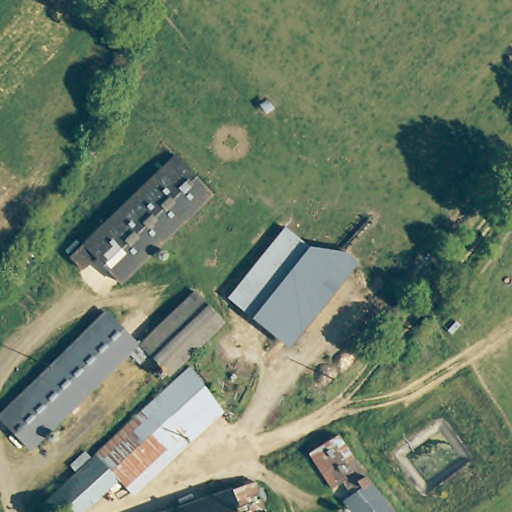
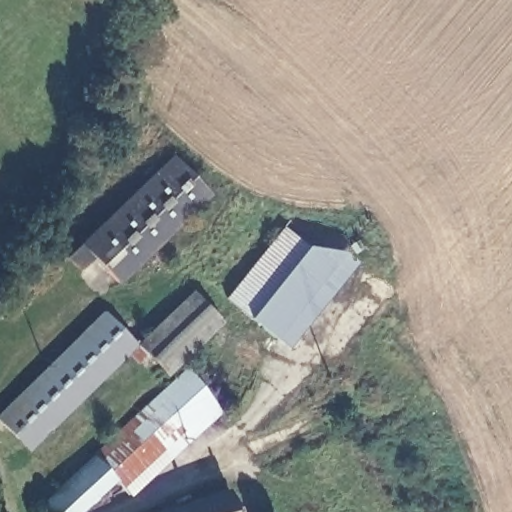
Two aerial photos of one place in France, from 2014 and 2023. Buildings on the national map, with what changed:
unchanged [(172,154),(211,188),(161,240),(119,279),(99,257),(84,272),(69,259),(172,154)]
unchanged [(353,265),(297,335),(249,297),(307,229),(353,265)]
unchanged [(147,337),(194,289),(217,312),(225,319),(179,367),(160,349),(152,358),(139,346),(147,337)]
unchanged [(3,427),(108,317),(139,346),(33,456),(3,427)]
unchanged [(136,491),(126,480),(103,454),(193,371),(229,409),(136,491)]
demolished [(309,454),(339,434),(372,476),(346,488),(337,492),(309,454)]
unchanged [(103,454),(126,480),(90,512),(54,512),(54,511),(49,505),(103,454)]
demolished [(398,512),(352,512),(342,499),(349,493),(346,488),(372,476),(398,512)]
unchanged [(234,489),(241,512),(173,512),(234,489)]

